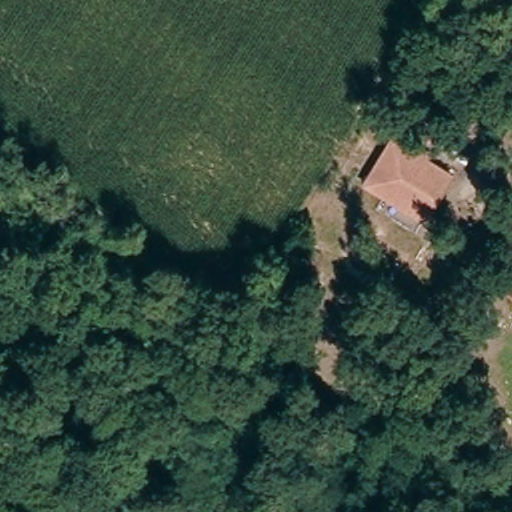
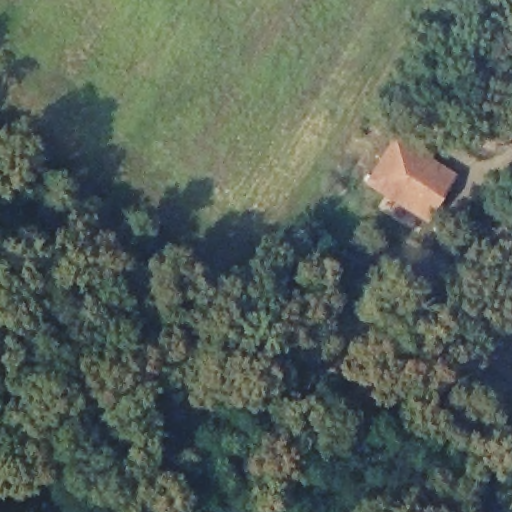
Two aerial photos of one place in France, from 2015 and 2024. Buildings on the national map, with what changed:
unchanged [(407,208),(364,181),(392,136),(450,174),(442,187),(422,218),(407,208)]
unchanged [(512,281),(512,290),(507,286),(512,281)]

